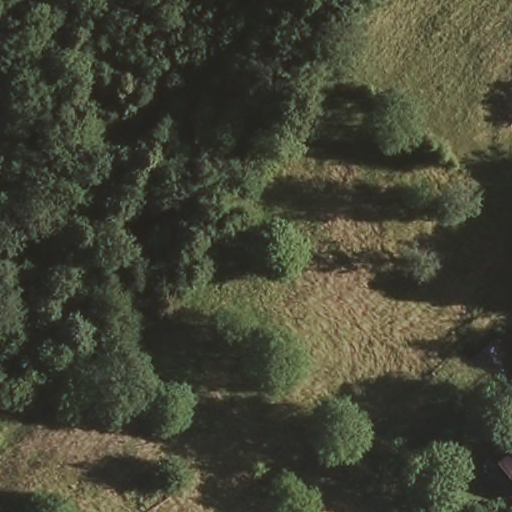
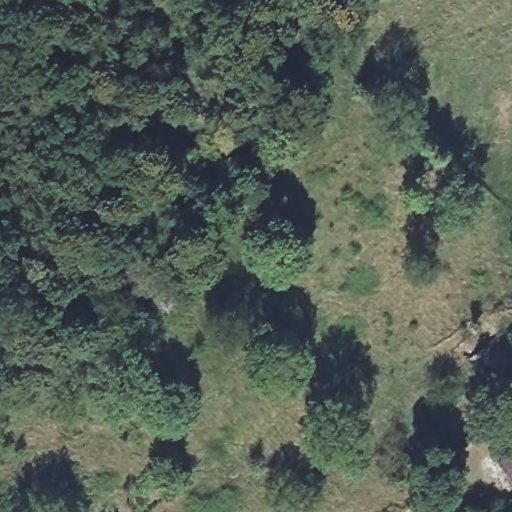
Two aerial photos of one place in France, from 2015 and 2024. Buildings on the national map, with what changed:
unchanged [(468,358),(500,336),(512,353),(512,383),(492,395),(468,358)]
unchanged [(512,447),(512,481),(493,462),(512,447)]

